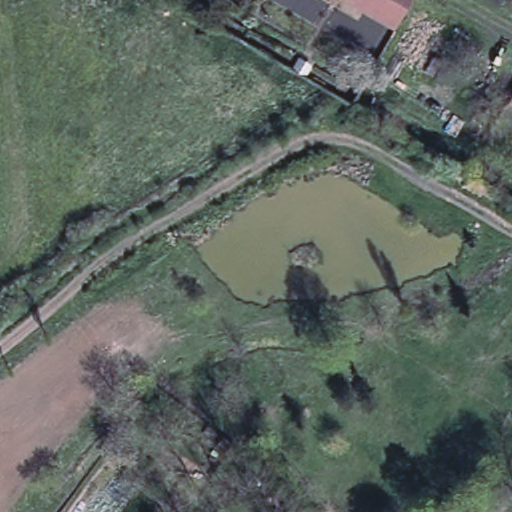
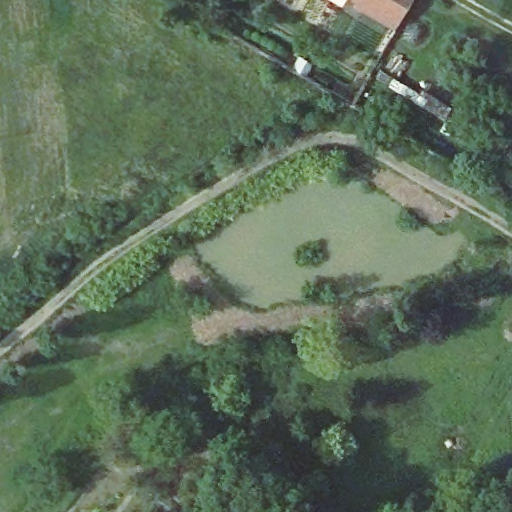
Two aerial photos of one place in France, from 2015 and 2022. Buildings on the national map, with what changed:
unchanged [(358,0),(411,0),(396,26),(365,8),(357,3),(358,0)]

